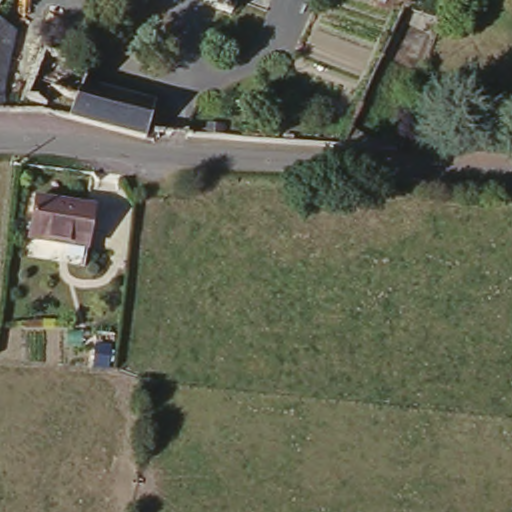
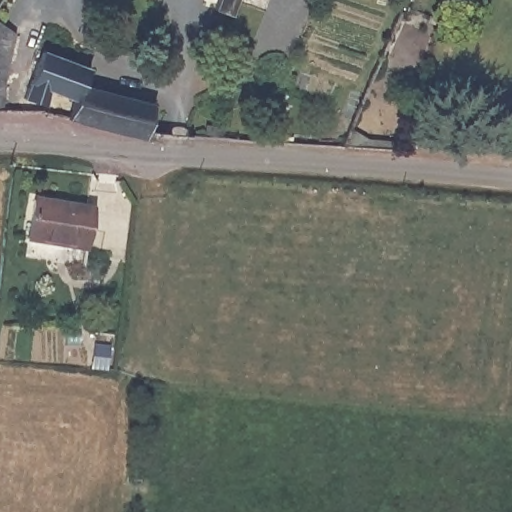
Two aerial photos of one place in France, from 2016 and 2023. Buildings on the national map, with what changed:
unchanged [(216,16),(220,0),(237,0),(229,22),(216,16)]
unchanged [(0,14),(14,28),(10,106),(0,106),(0,14)]
unchanged [(136,137),(70,116),(86,80),(155,106),(136,137)]
unchanged [(94,205),(87,245),(26,235),(32,194),(94,205)]

